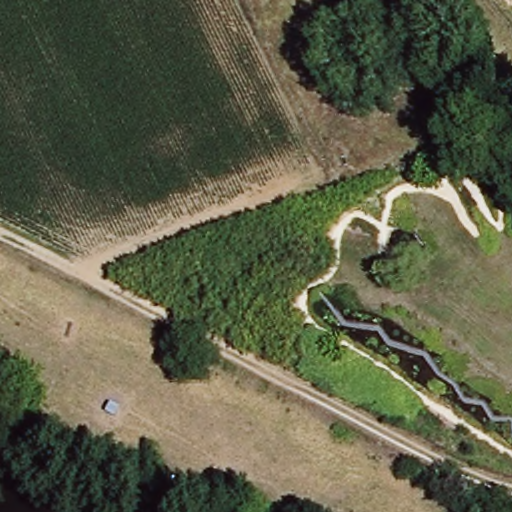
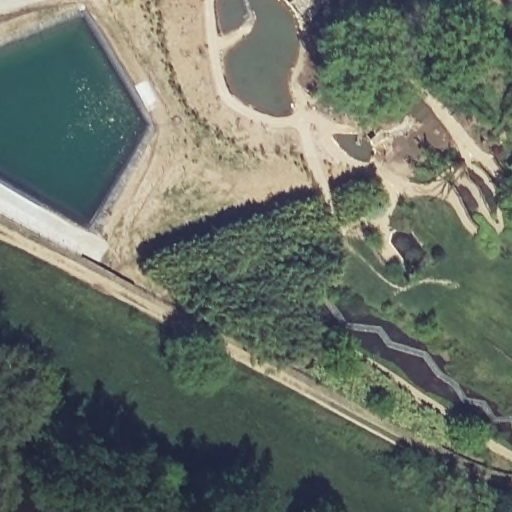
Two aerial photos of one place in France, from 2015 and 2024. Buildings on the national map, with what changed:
[]

